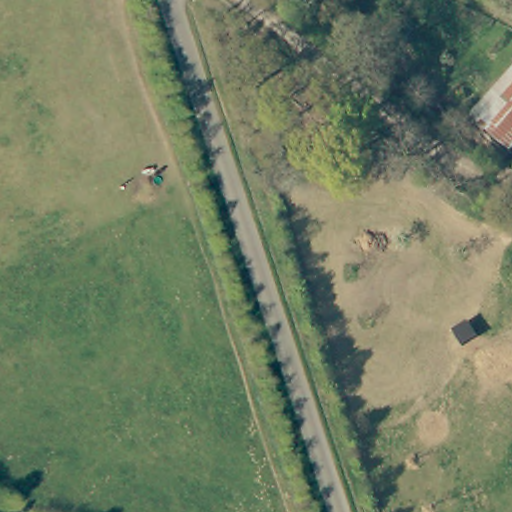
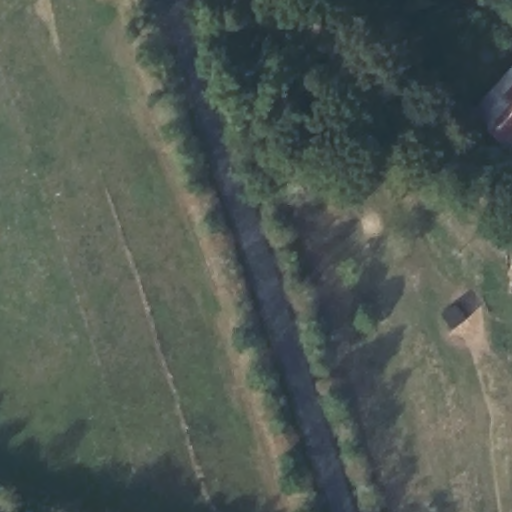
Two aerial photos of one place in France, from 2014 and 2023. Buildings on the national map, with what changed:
unchanged [(468,114),(512,63),(512,143),(508,147),(468,114)]

